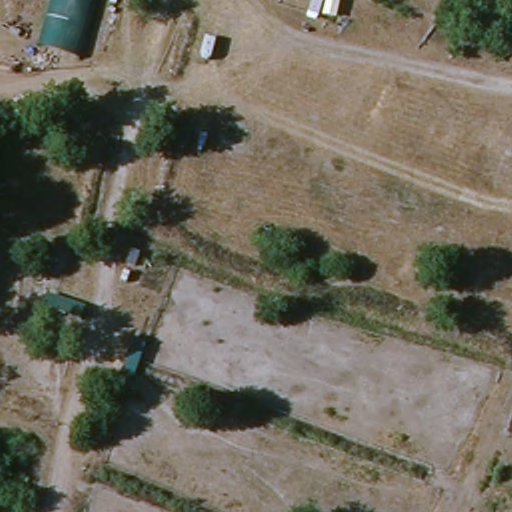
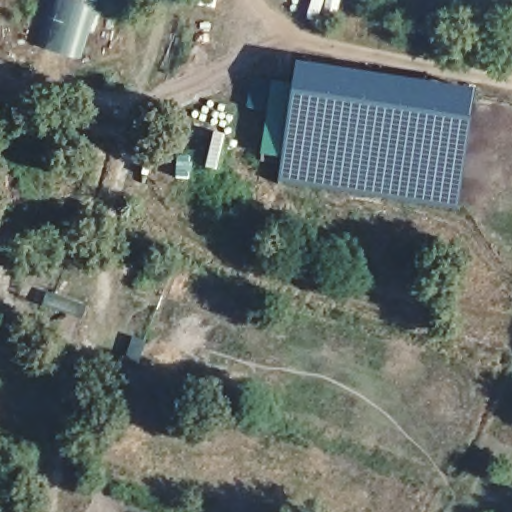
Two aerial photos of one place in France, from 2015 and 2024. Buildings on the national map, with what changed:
new [(51,0),(97,0),(80,60),(37,46),(51,0)]
new [(280,181),(298,65),(477,93),(458,209),(280,181)]

